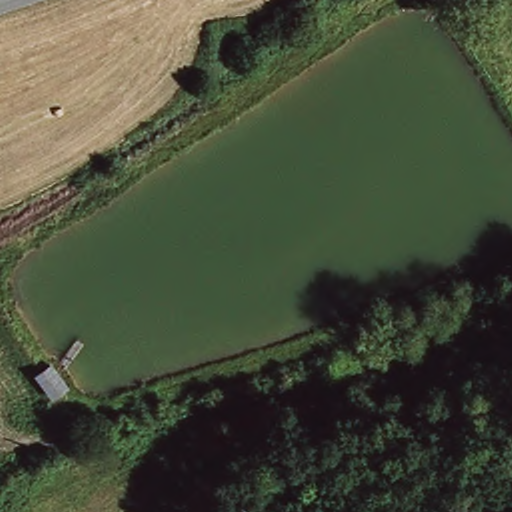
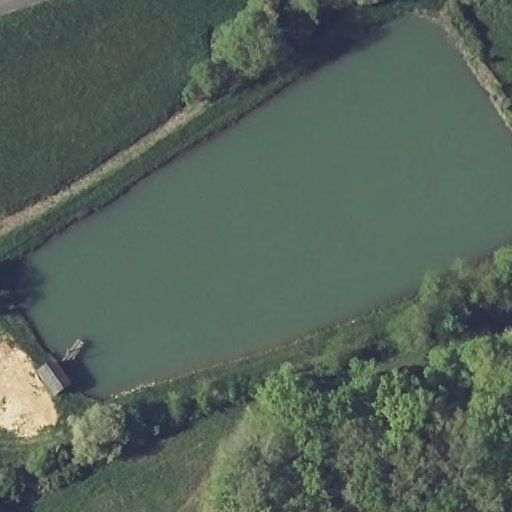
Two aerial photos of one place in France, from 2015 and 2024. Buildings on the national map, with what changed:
unchanged [(58,390),(43,400),(25,378),(41,366),(58,390)]

